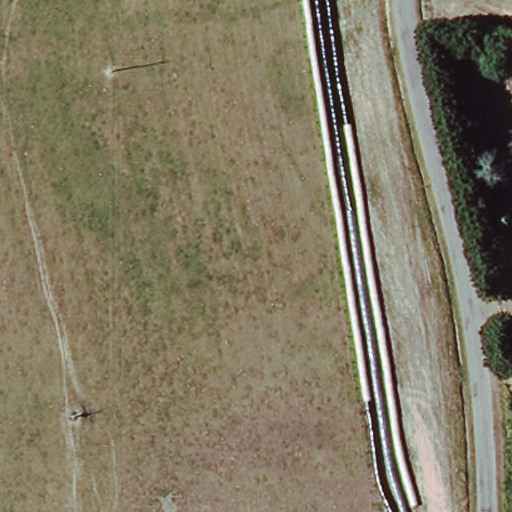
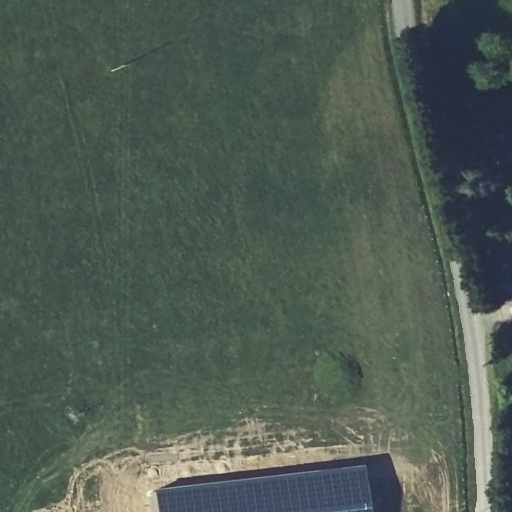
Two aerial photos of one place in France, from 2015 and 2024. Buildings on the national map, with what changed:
demolished [(192,336),(174,350),(164,338),(182,324),(192,336)]
new [(365,512),(152,512),(149,491),(359,466),(365,512)]

